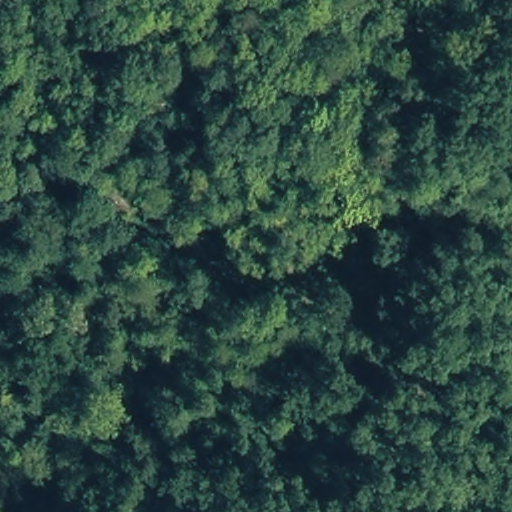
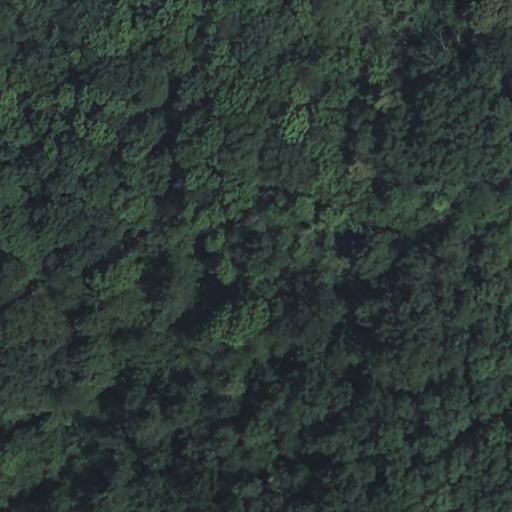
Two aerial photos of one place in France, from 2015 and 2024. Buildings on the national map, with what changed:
[]

